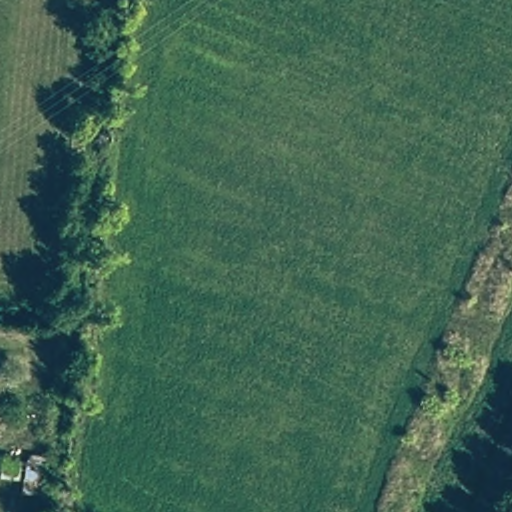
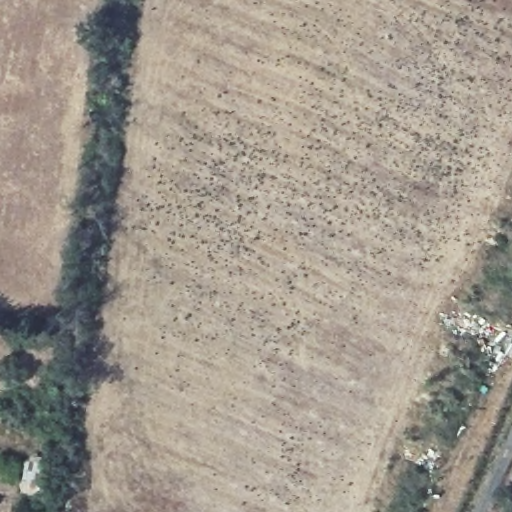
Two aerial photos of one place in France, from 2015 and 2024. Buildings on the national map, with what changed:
unchanged [(16,480),(0,478),(0,461),(16,465),(18,453),(45,458),(39,498),(13,497),(16,480)]

